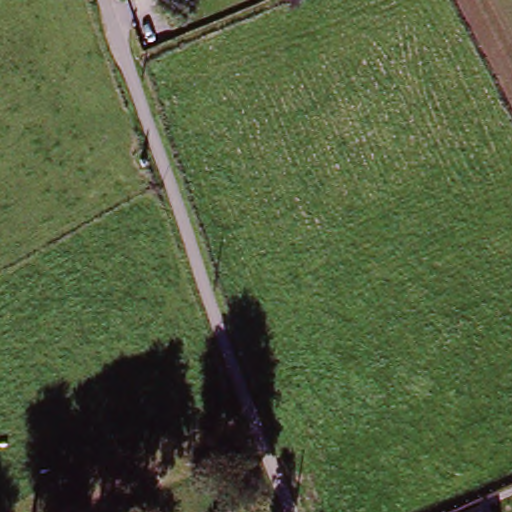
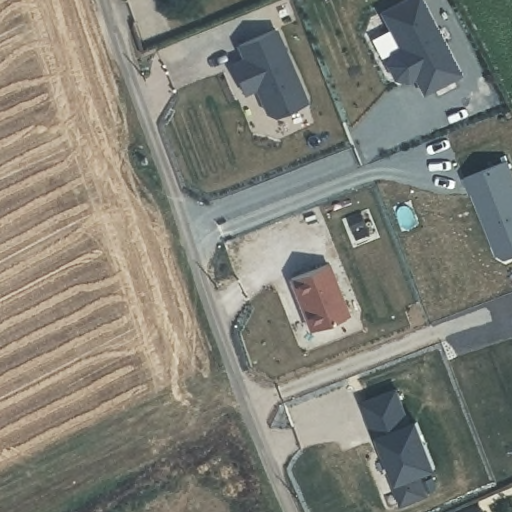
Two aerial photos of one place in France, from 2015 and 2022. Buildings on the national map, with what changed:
new [(404,0),(425,0),(463,74),(424,93),(416,77),(407,82),(396,79),(388,65),(392,54),(401,49),(382,11),(404,0)]
new [(276,29),(310,103),(277,119),(270,115),(258,92),(245,97),(232,62),(242,56),(237,46),(276,29)]
new [(507,158),(512,169),(512,258),(507,259),(494,253),(463,176),(507,158)]
new [(352,317),(310,332),(289,280),(330,263),(352,317)]
unchanged [(486,512),(474,512),(484,508),(486,512)]

